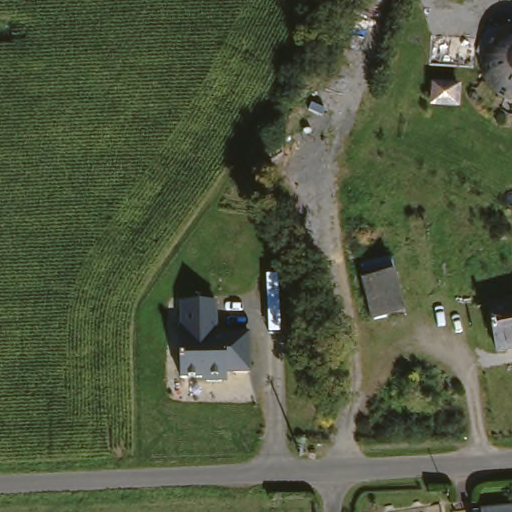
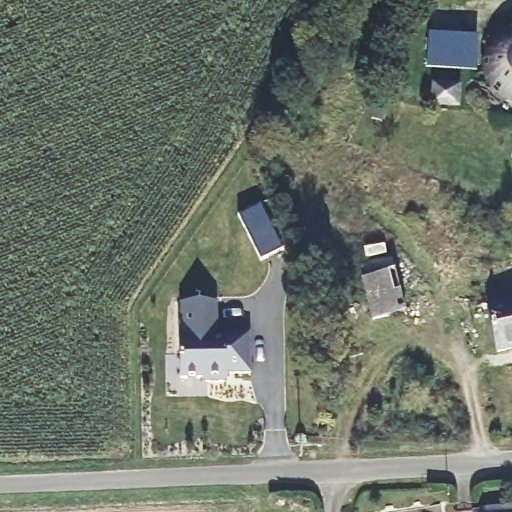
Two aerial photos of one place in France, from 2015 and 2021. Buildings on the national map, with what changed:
unchanged [(494,86),(488,73),(487,61),(491,48),(496,39),(505,34),(512,32),(512,94),(509,94),(504,92),(500,90),(494,86)]
new [(429,35),(480,38),(477,70),(427,66),(429,35)]
new [(239,215),(262,204),(283,250),(261,260),(239,215)]
unchanged [(357,282),(352,268),(386,258),(392,273),(402,316),(369,326),(357,282)]
unchanged [(512,304),(512,352),(499,356),(489,310),(512,304)]
unchanged [(174,341),(179,341),(179,306),(215,305),(216,335),(247,334),(246,377),(222,377),(222,383),(196,385),(196,379),(176,380),(174,341)]

